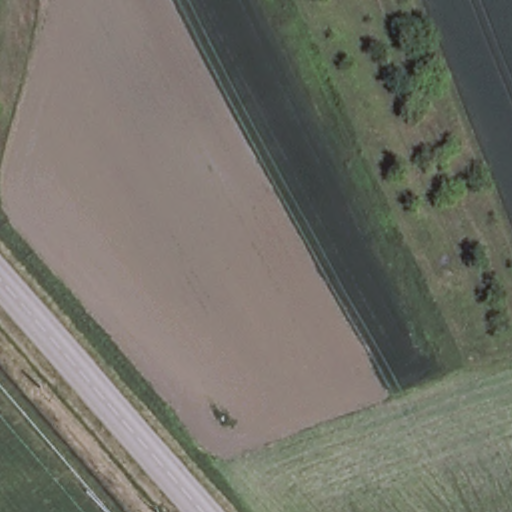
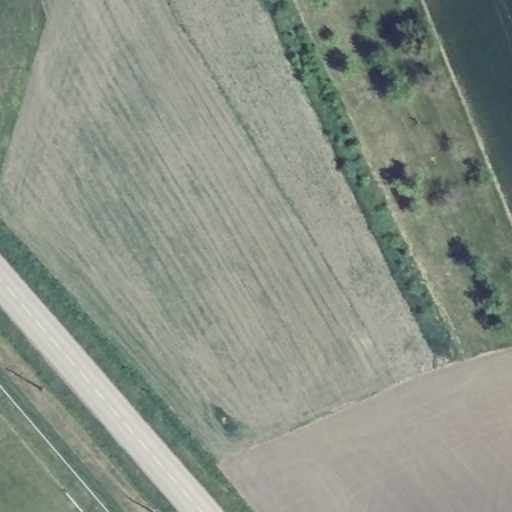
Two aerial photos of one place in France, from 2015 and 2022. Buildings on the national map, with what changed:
[]

